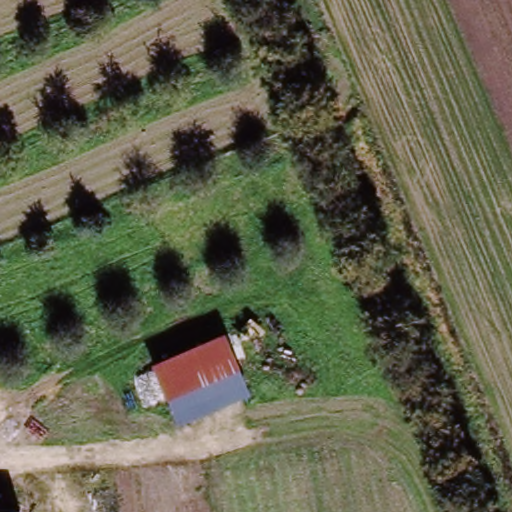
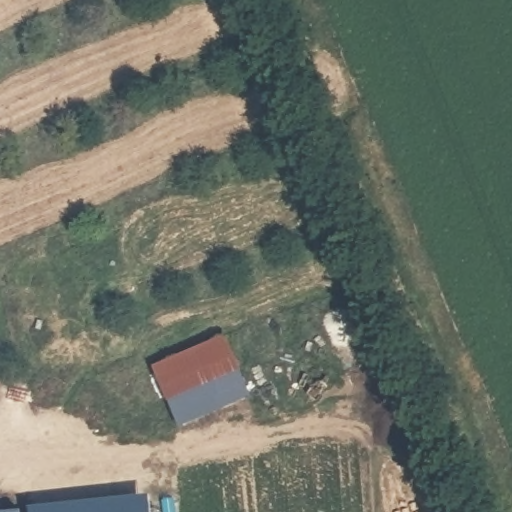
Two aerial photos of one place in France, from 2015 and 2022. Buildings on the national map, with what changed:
unchanged [(252,395),(179,429),(152,368),(225,336),(252,395)]
new [(24,512),(24,508),(153,498),(154,512),(24,512)]

